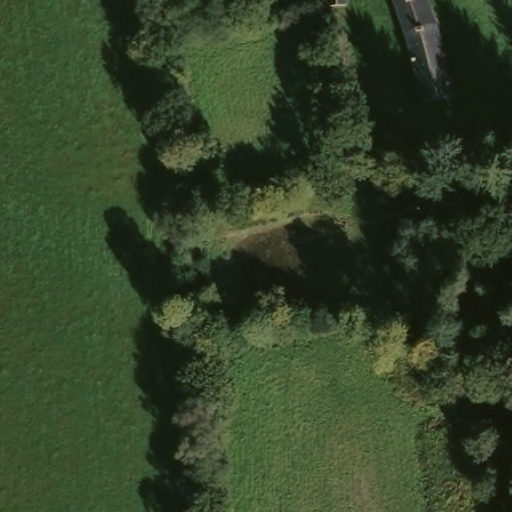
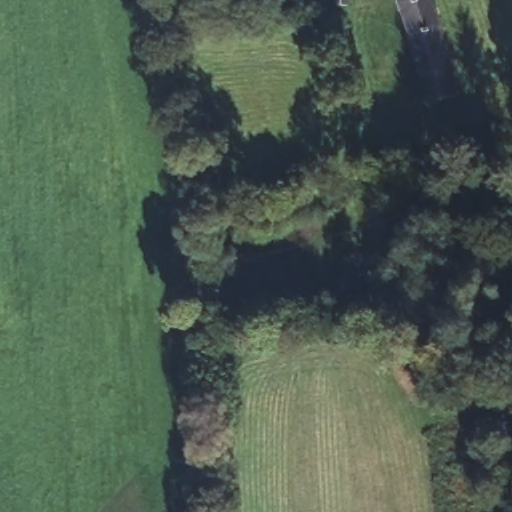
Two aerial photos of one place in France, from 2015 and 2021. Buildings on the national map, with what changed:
unchanged [(361,7),(334,11),(335,0),(360,0),(361,7)]
unchanged [(461,99),(436,105),(404,0),(430,0),(461,99)]

